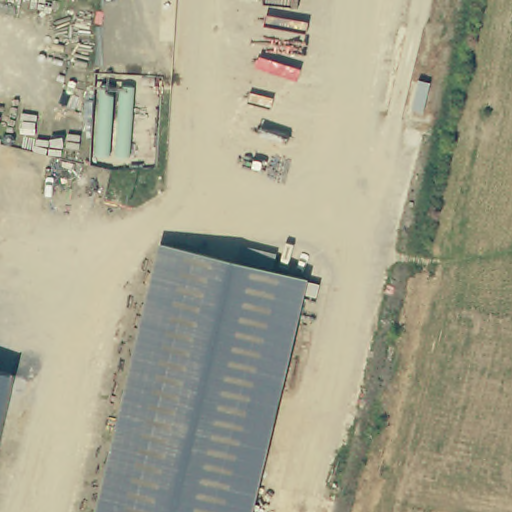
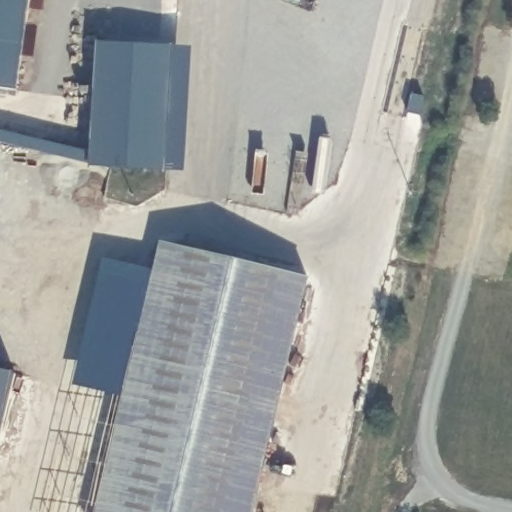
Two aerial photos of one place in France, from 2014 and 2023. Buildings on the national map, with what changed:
new [(17,90),(0,87),(0,0),(29,0),(17,90)]
new [(188,175),(92,169),(99,43),(195,48),(188,175)]
unchanged [(253,512),(100,512),(164,244),(309,280),(253,512)]
unchanged [(13,374),(0,433),(0,371),(13,374)]

